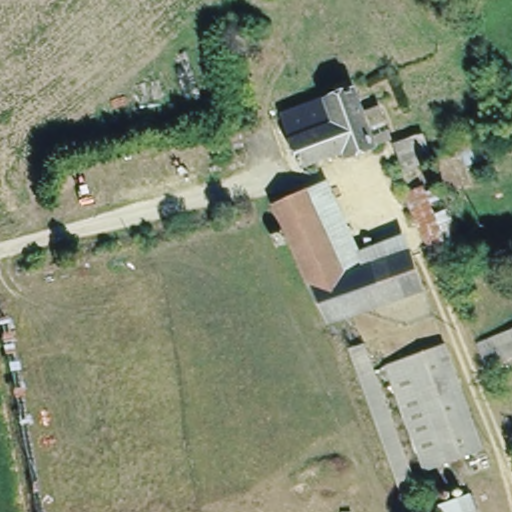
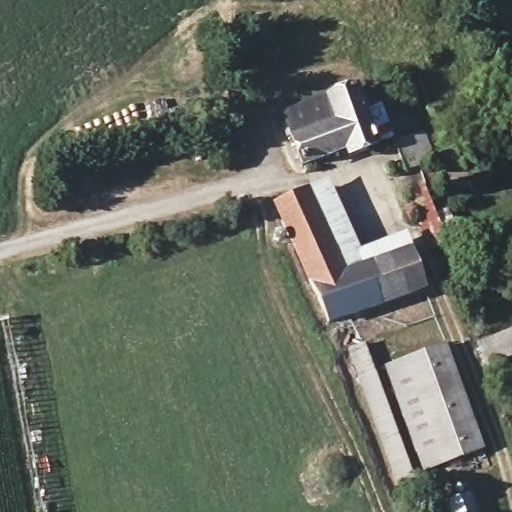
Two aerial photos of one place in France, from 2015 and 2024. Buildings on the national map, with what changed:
unchanged [(282,105),(290,102),(334,91),(330,76),(340,72),(344,83),(349,83),(372,142),(343,153),(337,141),(297,155),(282,105)]
unchanged [(387,136),(421,122),(428,141),(430,148),(399,162),(395,156),(387,136)]
unchanged [(339,317),(321,322),(269,190),(309,179),(335,263),(407,238),(426,284),(339,317)]
unchanged [(407,196),(419,190),(427,204),(446,197),(458,237),(443,244),(427,252),(422,235),(407,196)]
unchanged [(479,346),(512,333),(512,353),(487,362),(479,346)]
unchanged [(432,459),(393,353),(433,340),(474,444),(432,459)]
unchanged [(359,389),(372,382),(418,489),(403,493),(359,389)]
unchanged [(443,509),(471,499),(476,512),(444,512),(443,509)]

